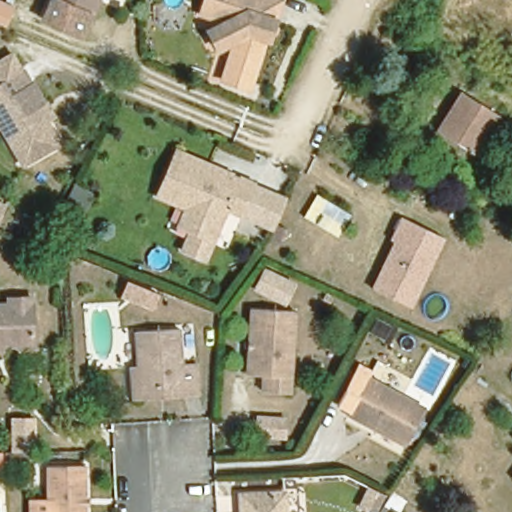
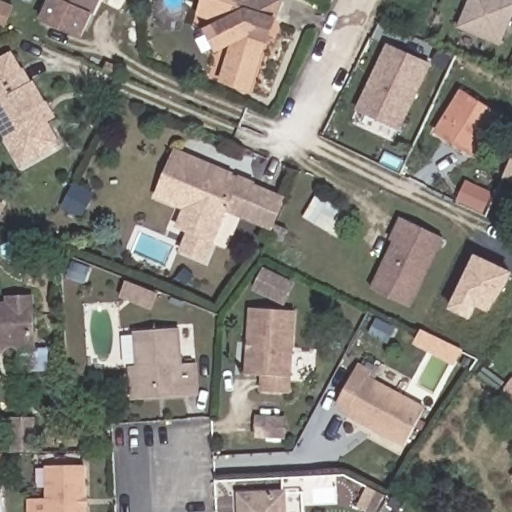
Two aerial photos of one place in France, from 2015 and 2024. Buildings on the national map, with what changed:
unchanged [(39,7),(43,1),(43,0),(89,0),(87,5),(78,25),(39,7)]
unchanged [(210,29),(228,20),(202,12),(205,0),(282,0),(276,18),(269,38),(267,37),(252,89),(224,80),(237,38),(219,47),(210,29)]
new [(499,46),(458,29),(470,0),(504,0),(512,3),(512,15),(499,46)]
new [(4,25),(0,24),(0,2),(11,7),(4,25)]
new [(399,130),(358,112),(386,47),(428,66),(399,130)]
unchanged [(20,67),(29,84),(35,81),(49,103),(37,109),(56,142),(23,161),(1,124),(0,125),(0,59),(10,53),(19,68),(20,67)]
unchanged [(438,126),(463,86),(499,107),(473,146),(438,126)]
unchanged [(189,194),(163,181),(179,147),(219,166),(220,162),(259,180),(244,209),(229,202),(205,251),(183,240),(193,219),(180,213),(189,194)]
new [(503,174),(512,153),(512,179),(503,174)]
unchanged [(259,180),(287,193),(273,222),(244,209),(259,180)]
new [(484,215),(455,202),(463,184),(493,197),(484,215)]
unchanged [(89,197),(79,222),(62,214),(71,191),(89,197)]
unchanged [(297,225),(292,235),(274,227),(279,216),(297,225)]
unchanged [(444,234),(413,305),(374,288),(398,233),(394,232),(401,216),(444,234)]
new [(471,320),(448,311),(476,256),(512,273),(512,275),(493,311),(479,305),(471,320)]
unchanged [(0,306),(5,305),(5,296),(26,295),(27,304),(29,340),(0,342),(0,306)]
unchanged [(268,370),(253,369),(254,306),(294,306),(294,385),(268,385),(268,370)]
unchanged [(121,363),(130,362),(128,326),(169,325),(169,357),(185,358),(187,388),(132,391),(122,391),(121,363)]
unchanged [(344,411),(365,375),(418,406),(399,441),(344,411)]
unchanged [(46,495),(44,464),(81,462),(84,512),(31,512),(30,496),(46,495)]
unchanged [(280,512),(239,512),(238,490),(279,487),(280,512)]

